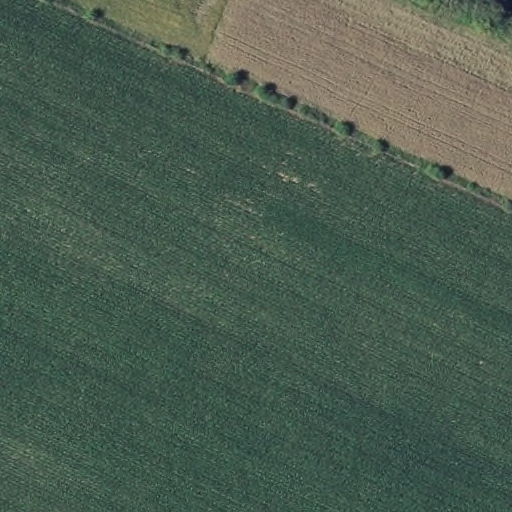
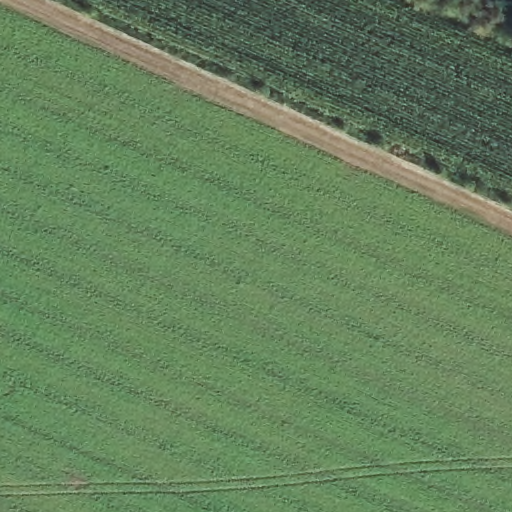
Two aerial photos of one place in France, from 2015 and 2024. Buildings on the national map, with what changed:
[]

